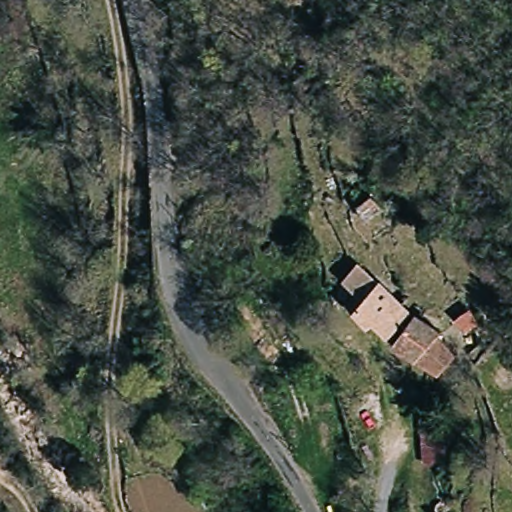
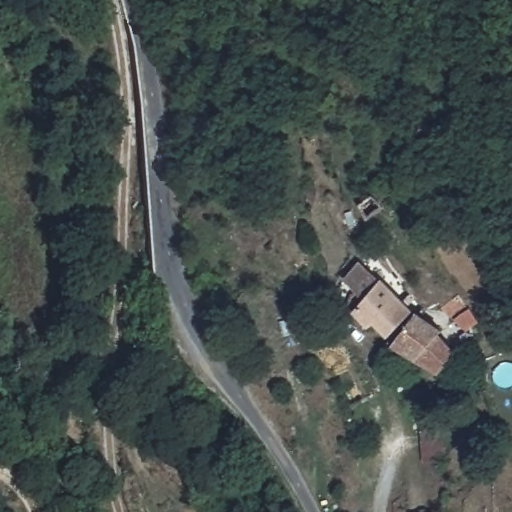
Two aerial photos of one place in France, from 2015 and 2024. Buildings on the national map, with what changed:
unchanged [(356,181),(370,170),(384,188),(366,200),(356,181)]
unchanged [(333,281),(331,277),(349,257),(392,300),(372,324),(354,307),(349,312),(324,292),(333,281)]
unchanged [(463,291),(477,308),(464,319),(450,302),(457,296),(463,291)]
unchanged [(398,302),(423,321),(421,328),(431,344),(419,361),(373,332),(377,327),(398,302)]
unchanged [(452,411),(454,458),(422,460),(419,413),(452,411)]

